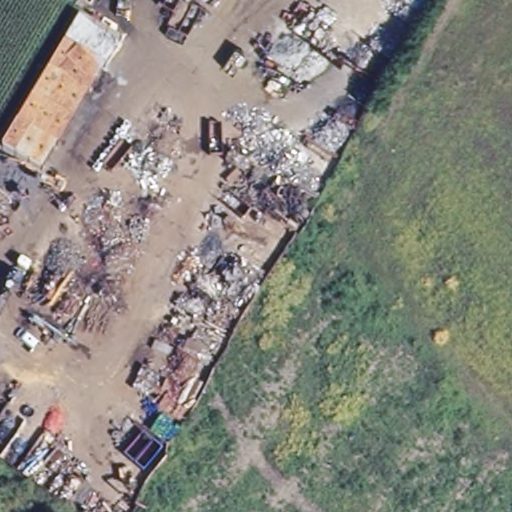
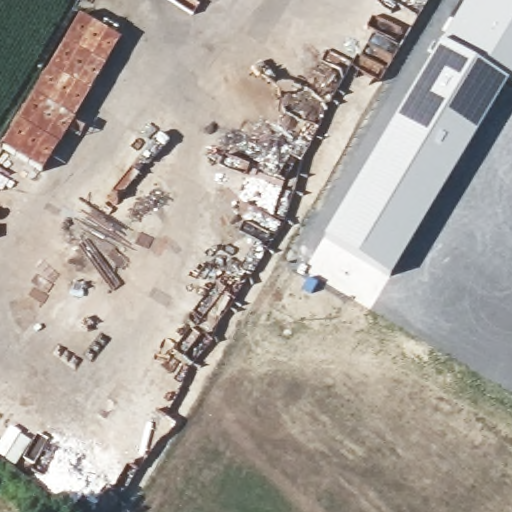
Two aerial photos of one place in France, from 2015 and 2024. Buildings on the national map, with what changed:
new [(465,0),(512,0),(512,84),(508,81),(467,56),(469,52),(444,36),(465,0)]
new [(120,42),(41,173),(1,150),(79,16),(120,42)]
new [(441,41),(467,56),(508,81),(418,232),(389,277),(321,237),(441,41)]
new [(321,237),(389,277),(370,307),(306,270),(321,237)]

